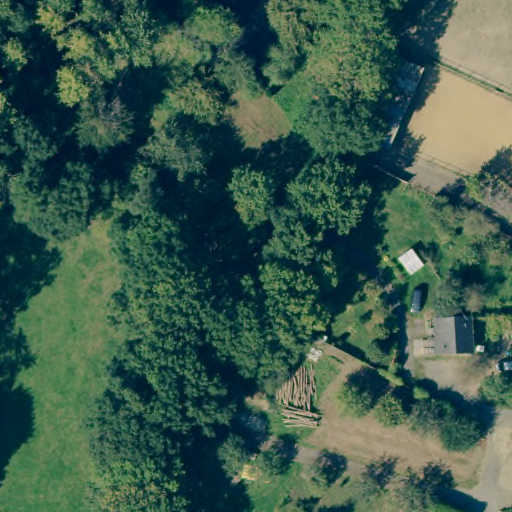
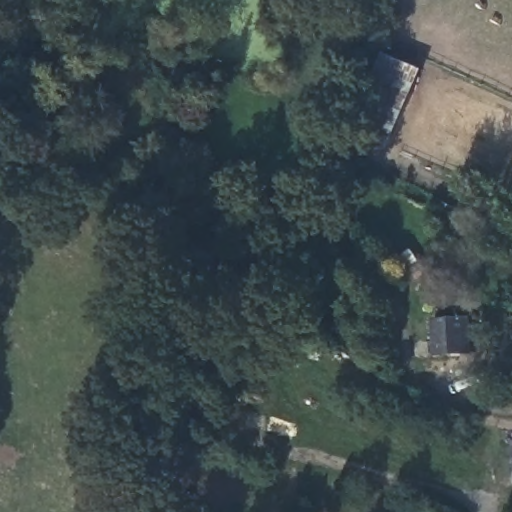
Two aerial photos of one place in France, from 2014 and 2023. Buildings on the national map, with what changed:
unchanged [(386,150),(349,134),(382,56),(419,72),(386,150)]
unchanged [(184,240),(202,309),(177,316),(159,247),(184,240)]
unchanged [(470,352),(436,352),(434,317),(469,317),(470,352)]

